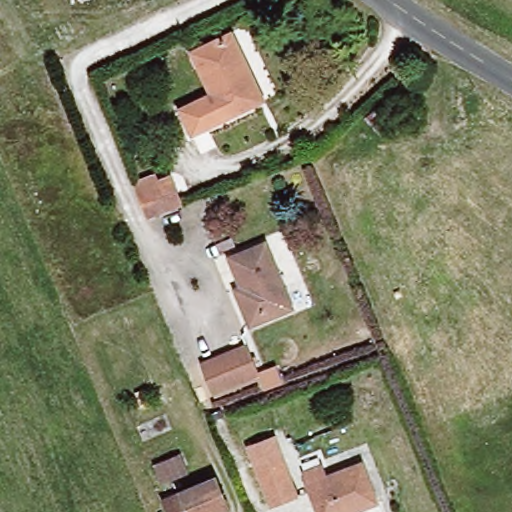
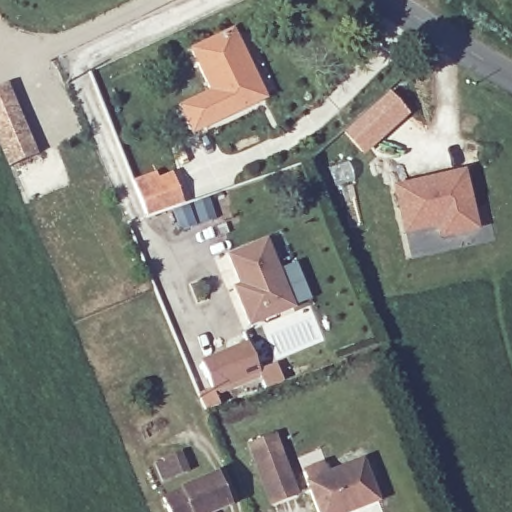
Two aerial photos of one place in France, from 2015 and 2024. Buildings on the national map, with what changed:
unchanged [(259,101),(190,133),(178,106),(209,91),(190,51),(231,31),(249,71),(263,99),(259,101)]
new [(6,86),(35,156),(6,168),(0,153),(0,89),(6,86)]
unchanged [(380,133),(365,116),(379,104),(394,120),(380,133)]
new [(463,171),(477,232),(439,242),(436,228),(403,237),(391,188),(463,171)]
unchanged [(157,179),(168,174),(179,205),(146,217),(131,182),(155,173),(157,179)]
unchanged [(239,286),(228,257),(264,243),(290,309),(248,325),(236,296),(233,288),(239,286)]
unchanged [(211,386),(200,359),(246,340),(257,367),(211,386)]
unchanged [(259,365),(274,359),(281,376),(263,383),(257,367),(259,365)]
unchanged [(295,495),(270,504),(248,447),(273,437),(295,495)]
unchanged [(156,472),(181,461),(189,480),(164,491),(156,472)]
unchanged [(302,472),(321,465),(325,476),(361,462),(376,502),(349,512),(318,512),(302,472)]
unchanged [(162,499),(214,478),(226,508),(215,512),(167,512),(162,499)]

